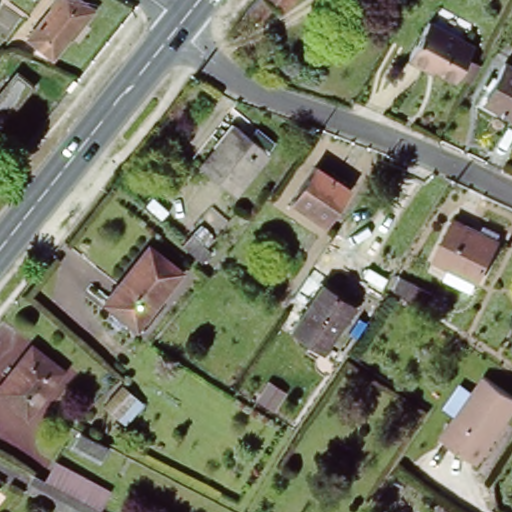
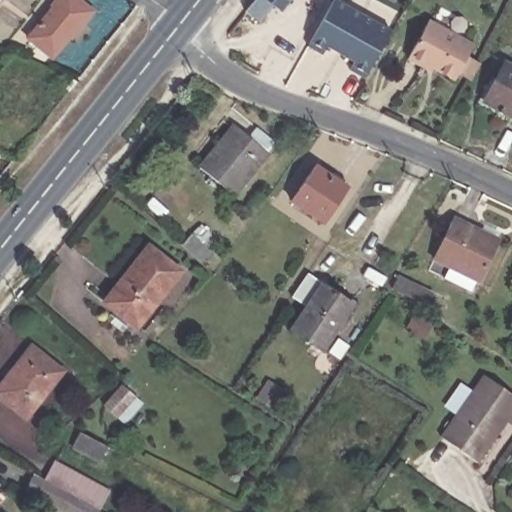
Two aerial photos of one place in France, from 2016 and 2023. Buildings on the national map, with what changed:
unchanged [(55,0),(83,0),(93,8),(82,21),(80,20),(52,55),(27,35),(55,0)]
unchanged [(278,13),(268,5),(254,24),(240,13),(250,0),(288,0),(278,13)]
new [(363,15),(340,54),(327,47),(323,55),(308,46),(334,0),(337,0),(363,15)]
new [(392,31),(365,79),(350,70),(355,62),(340,54),(363,15),(392,31)]
unchanged [(451,77),(423,61),(420,64),(404,55),(425,17),(470,41),(465,52),(478,60),(468,79),(454,71),(451,77)]
unchanged [(485,97),(504,62),(512,67),(512,117),(499,111),(482,102),(485,97)]
unchanged [(30,82),(0,120),(0,91),(16,71),(30,82)]
unchanged [(235,124),(270,153),(235,196),(199,168),(235,124)]
unchanged [(316,167),(349,189),(326,224),(292,202),(316,167)]
unchanged [(445,273),(450,263),(435,255),(455,215),(498,236),(479,277),(477,276),(472,286),(445,273)]
unchanged [(192,234),(222,259),(214,269),(185,243),(192,234)]
unchanged [(145,240),(178,266),(135,323),(102,297),(145,240)]
unchanged [(405,281),(421,289),(417,298),(400,290),(405,281)]
unchanged [(300,303),(310,289),(315,292),(318,285),(350,307),(318,353),(287,331),(305,306),(300,303)]
unchanged [(63,372),(25,419),(0,399),(0,389),(32,348),(63,372)]
unchanged [(472,368),(511,393),(470,457),(432,432),(472,368)]
unchanged [(123,384),(138,397),(118,418),(105,405),(123,384)]
unchanged [(110,446),(100,463),(72,449),(81,432),(110,446)]
unchanged [(45,479),(55,461),(110,489),(99,508),(85,501),(80,512),(67,512),(36,496),(45,479)]

